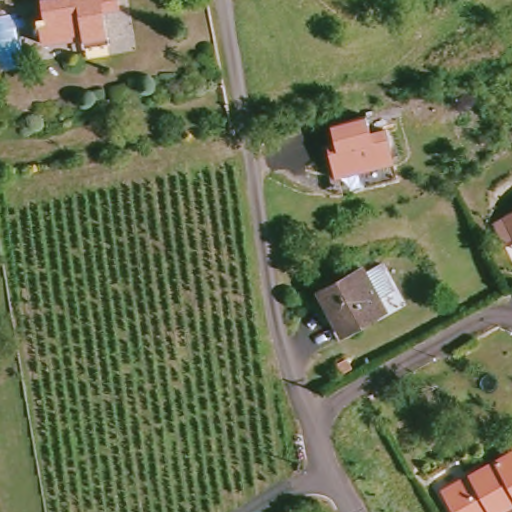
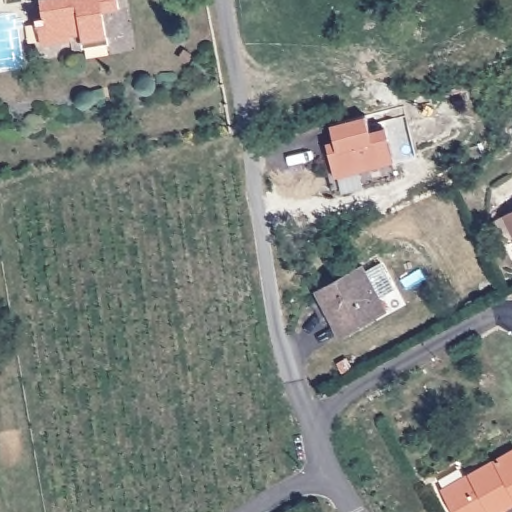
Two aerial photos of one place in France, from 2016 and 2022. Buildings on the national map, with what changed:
unchanged [(101,39),(79,43),(78,33),(65,35),(66,39),(38,44),(33,18),(40,17),(37,0),(112,0),(113,9),(97,11),(101,39)]
unchanged [(335,193),(330,175),(333,169),(328,143),(334,139),(331,126),(366,116),(369,129),(386,129),(392,163),(395,176),(335,193)]
unchanged [(503,214),(512,209),(512,232),(503,214)]
unchanged [(317,289),(361,265),(384,308),(341,331),(317,289)]
unchanged [(512,448),(512,499),(489,512),(449,512),(437,490),(512,448)]

